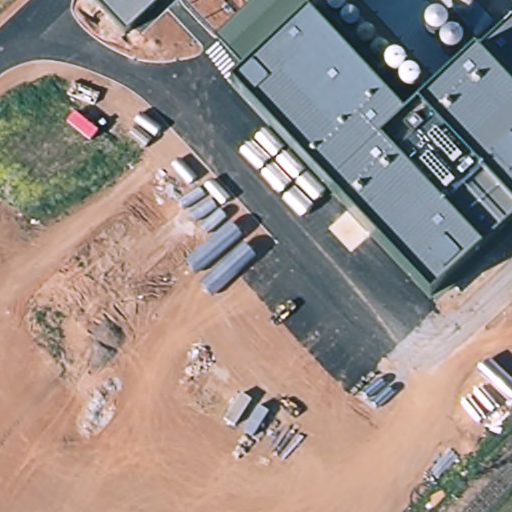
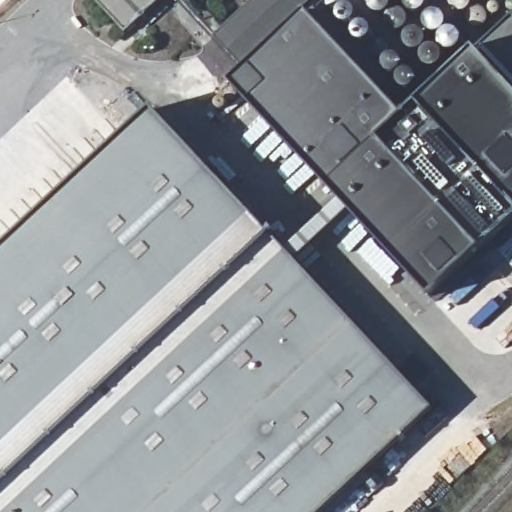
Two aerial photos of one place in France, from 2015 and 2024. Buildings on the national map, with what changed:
unchanged [(96,0),(160,0),(126,32),(96,0)]
unchanged [(406,115),(512,16),(512,223),(433,296),(234,84),(247,71),(215,36),(254,0),(323,0),(309,14),(406,115)]
new [(342,0),(396,61),(405,67),(417,79),(420,86),(419,90),(412,94),(404,90),(385,71),(326,7),(330,0),(342,0)]
new [(460,40),(457,46),(433,71),(427,70),(423,66),(359,0),(426,0),(457,31),(460,40)]
new [(488,25),(485,28),(479,29),(471,26),(457,11),(447,0),(470,0),(489,19),(488,25)]
new [(321,512),(0,512),(0,251),(153,108),(268,233),(431,409),(321,512)]

